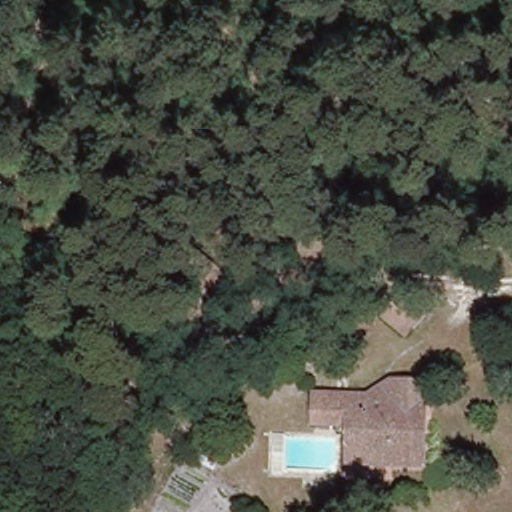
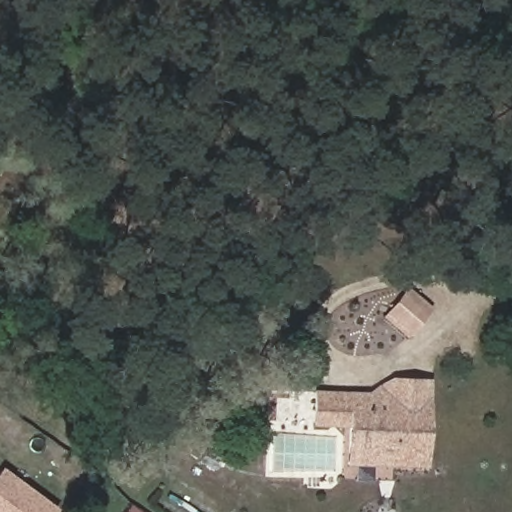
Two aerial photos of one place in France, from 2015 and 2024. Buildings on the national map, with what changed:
new [(381,317),(408,286),(434,308),(407,340),(381,317)]
unchanged [(436,385),(424,466),(359,455),(360,432),(318,425),(323,388),(386,400),(389,389),(411,381),(436,385)]
new [(1,467),(58,510),(56,512),(0,512),(0,469),(1,467)]
new [(143,512),(126,512),(132,503),(143,512)]

